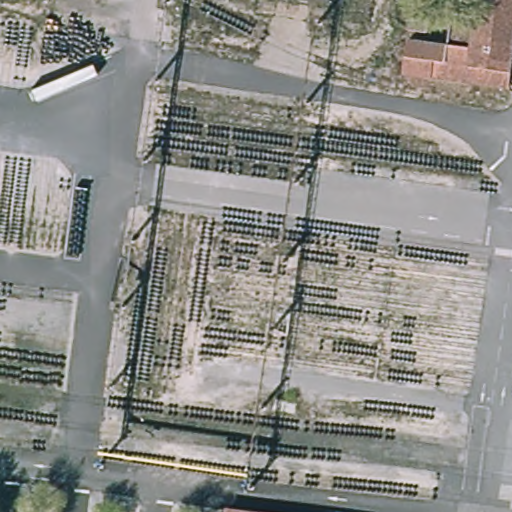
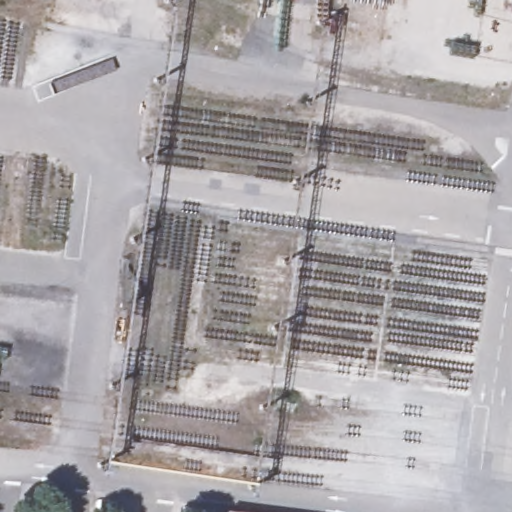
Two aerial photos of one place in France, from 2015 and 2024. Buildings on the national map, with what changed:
demolished [(406,37),(441,42),(446,8),(473,12),(475,0),(512,0),(512,48),(506,91),(400,75),(406,37)]
demolished [(433,32),(408,28),(409,17),(434,21),(433,32)]
unchanged [(223,506),(259,512),(222,512),(223,506)]

